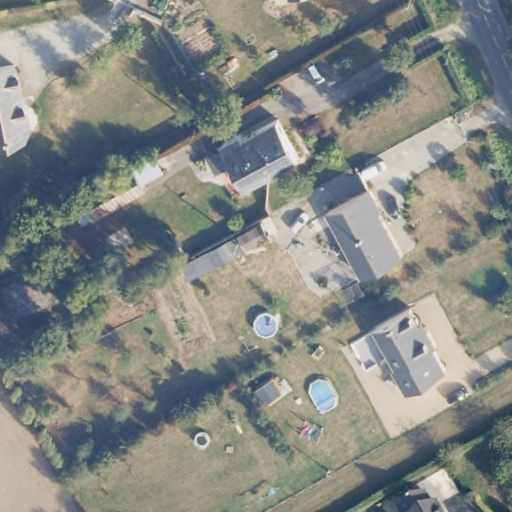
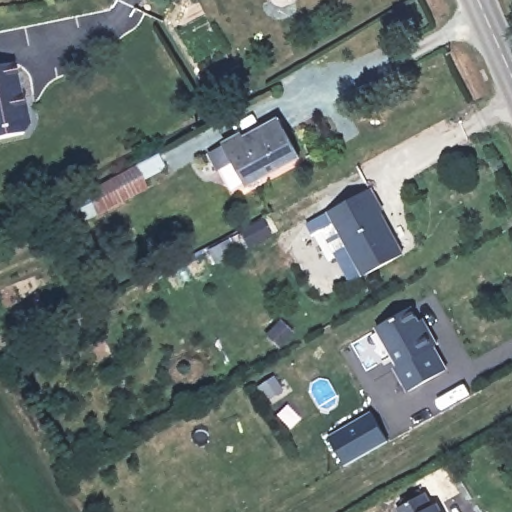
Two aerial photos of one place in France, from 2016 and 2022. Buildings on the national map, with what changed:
unchanged [(18,67),(23,96),(26,95),(32,124),(26,132),(0,137),(0,71),(18,67)]
unchanged [(221,145),(280,112),(306,154),(247,189),(221,145)]
unchanged [(188,166),(67,230),(56,208),(177,144),(188,166)]
unchanged [(323,214),(367,190),(375,205),(372,206),(401,258),(360,280),(323,214)]
unchanged [(408,307),(422,332),(427,329),(435,344),(431,346),(443,369),(404,391),(391,367),(395,365),(373,328),(408,307)]
new [(370,411),(387,441),(345,465),(327,435),(370,411)]
unchanged [(446,503),(451,512),(402,512),(434,493),(441,504),(446,503)]

